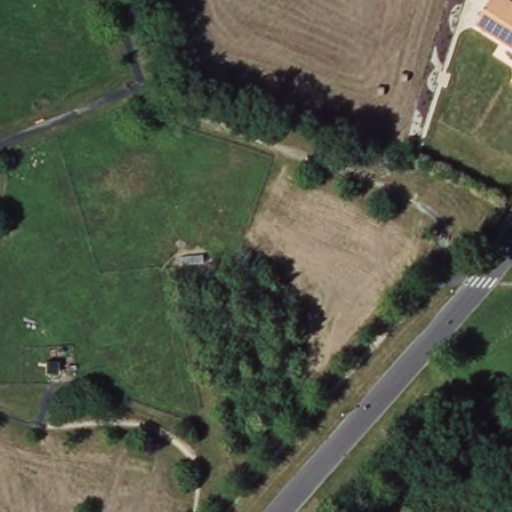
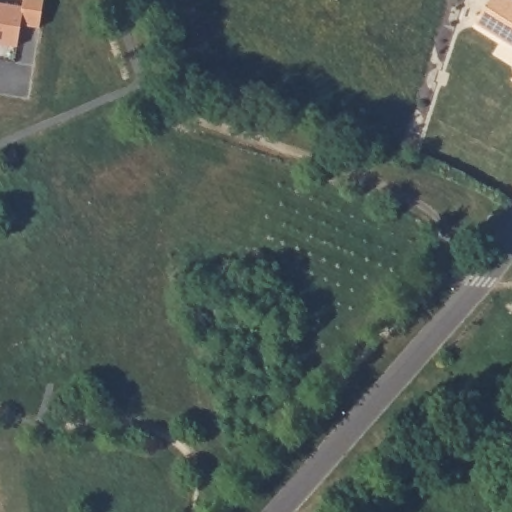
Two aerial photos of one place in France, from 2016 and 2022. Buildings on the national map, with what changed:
new [(24,0),(44,0),(40,28),(22,26),(19,47),(0,44),(0,3),(22,6),(24,0)]
unchanged [(490,0),(512,0),(512,36),(480,16),(490,0)]

